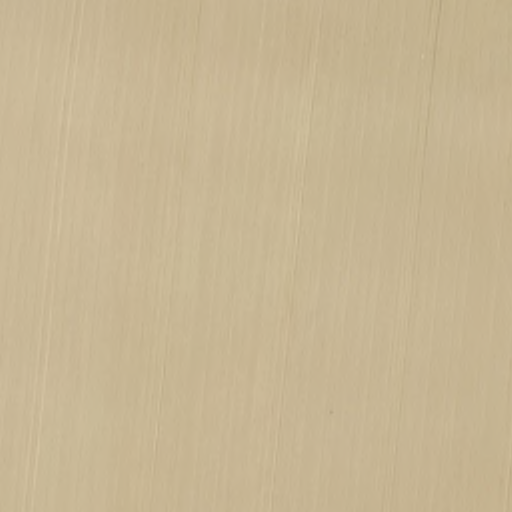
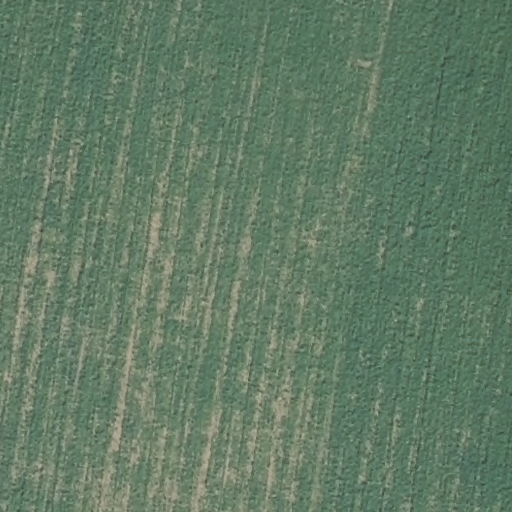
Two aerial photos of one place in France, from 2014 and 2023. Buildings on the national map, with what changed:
[]

